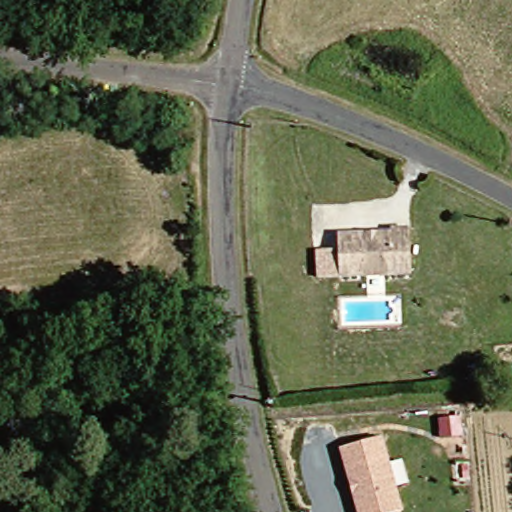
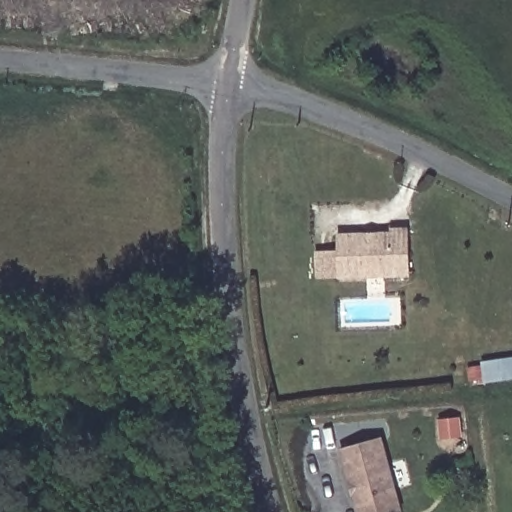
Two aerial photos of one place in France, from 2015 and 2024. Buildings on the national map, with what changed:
unchanged [(392,234),(392,231),(410,231),(406,280),(335,274),(338,231),(392,234)]
new [(481,365),(481,361),(512,357),(512,377),(469,382),(467,367),(481,365)]
unchanged [(400,512),(355,512),(337,450),(378,438),(400,512)]

